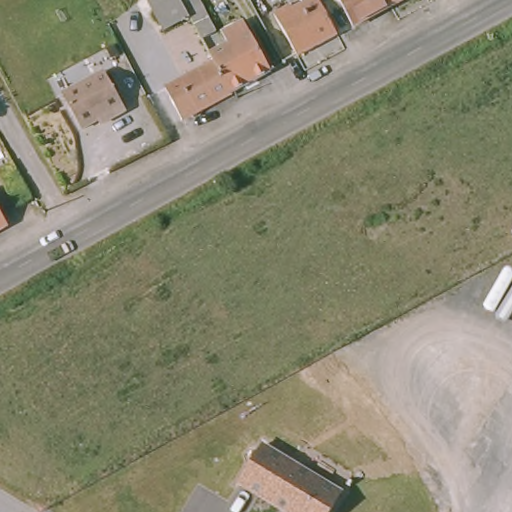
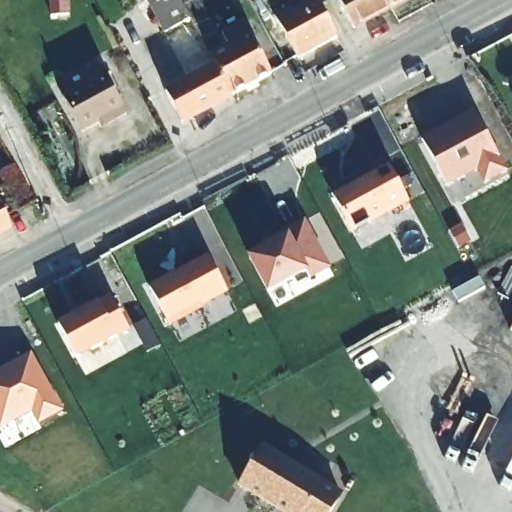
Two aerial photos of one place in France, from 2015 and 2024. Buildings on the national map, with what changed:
new [(52,14),(52,0),(69,0),(69,14),(52,14)]
unchanged [(148,0),(180,0),(190,18),(165,32),(148,0)]
unchanged [(202,40),(190,18),(180,0),(197,0),(215,33),(202,40)]
unchanged [(297,58),(274,15),(285,9),(287,14),(312,0),(317,0),(337,36),(297,58)]
unchanged [(353,28),(338,0),(386,0),(390,7),(353,28)]
unchanged [(403,0),(390,7),(386,0),(403,0)]
unchanged [(215,64),(210,55),(227,45),(222,34),(243,23),(270,74),(232,94),(215,64)]
unchanged [(232,94),(182,121),(165,90),(215,64),(232,94)]
unchanged [(127,112),(112,120),(110,116),(82,131),(63,96),(105,73),(127,112)]
new [(446,188),(422,139),(477,113),(509,173),(483,184),(476,170),(446,188)]
unchanged [(17,209),(0,178),(0,170),(13,163),(33,200),(17,209)]
new [(388,163),(409,203),(353,234),(333,194),(388,163)]
unchanged [(0,237),(0,219),(7,233),(0,237)]
new [(287,237),(284,232),(303,221),(329,267),(308,278),(305,271),(267,292),(248,257),(287,237)]
new [(207,256),(226,290),(200,304),(202,307),(169,325),(148,287),(207,256)]
new [(57,325),(73,316),(75,319),(83,313),(82,312),(110,296),(127,329),(75,358),(57,325)]
new [(64,411),(37,425),(31,413),(0,430),(0,368),(32,352),(64,411)]
unchanged [(331,512),(285,512),(239,486),(261,444),(343,492),(331,512)]

